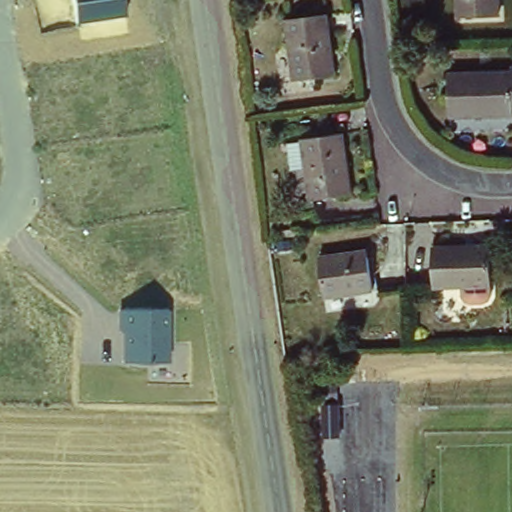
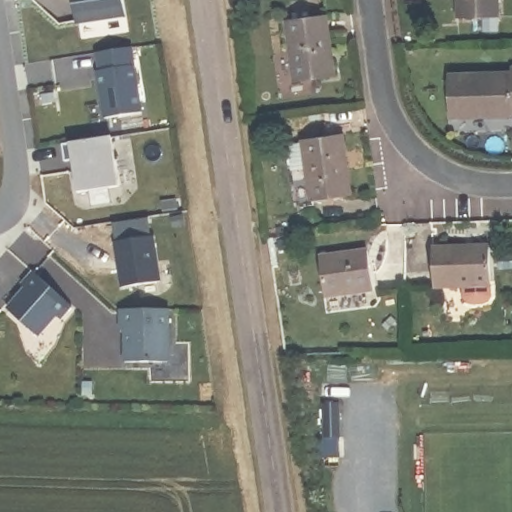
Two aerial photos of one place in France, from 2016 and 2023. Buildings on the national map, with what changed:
unchanged [(128,16),(77,24),(73,0),(125,0),(128,16)]
unchanged [(499,18),(459,18),(459,0),(498,0),(499,18)]
unchanged [(331,76),(292,81),(284,20),(323,15),(331,76)]
new [(130,46),(140,111),(103,117),(96,70),(99,70),(96,51),(130,46)]
unchanged [(509,114),(509,116),(445,118),(443,76),(507,74),(507,68),(512,68),(512,114),(509,114)]
unchanged [(353,195),(314,199),(310,167),(294,169),(290,143),(308,140),(308,138),(344,133),(353,195)]
new [(110,135),(117,185),(76,191),(73,158),(65,159),(61,142),(110,135)]
new [(151,233),(158,278),(120,284),(114,239),(151,233)]
unchanged [(486,285),(429,287),(428,248),(485,246),(486,285)]
unchanged [(375,289),(327,296),(322,258),(369,250),(375,289)]
new [(71,303),(59,317),(55,314),(36,334),(6,307),(25,286),(21,283),(33,270),(71,303)]
unchanged [(171,362),(124,362),(123,328),(119,328),(118,311),(169,310),(171,362)]

